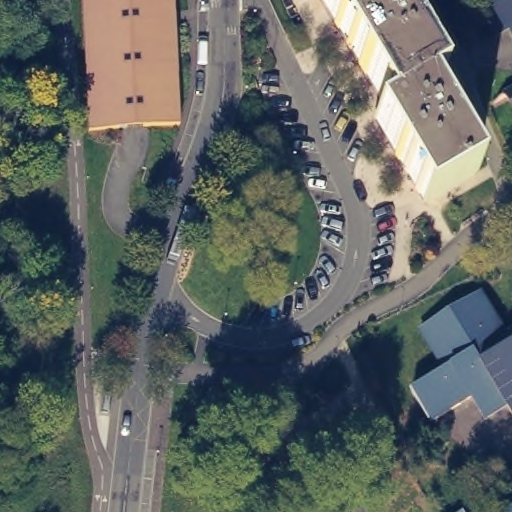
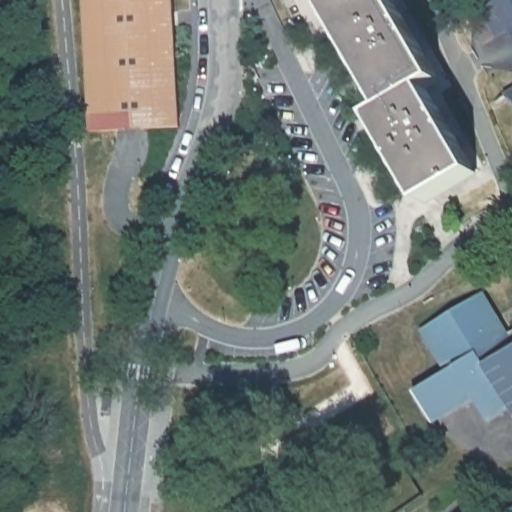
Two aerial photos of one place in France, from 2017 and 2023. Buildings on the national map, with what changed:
unchanged [(94,127),(87,0),(178,0),(184,122),(94,127)]
unchanged [(475,174),(423,205),(375,119),(388,112),(340,31),(322,0),(392,0),(440,82),(427,89),(475,174)]
unchanged [(485,0),(512,0),(512,19),(490,31),(475,5),(485,0)]
unchanged [(510,85),(512,84),(512,90),(510,85)]
unchanged [(507,402),(485,415),(472,393),(430,418),(412,387),(445,366),(420,325),(482,288),(507,329),(512,326),(512,409),(507,402)]
unchanged [(512,504),(512,512),(499,512),(512,504)]
unchanged [(466,511),(467,512),(464,512),(466,511)]

